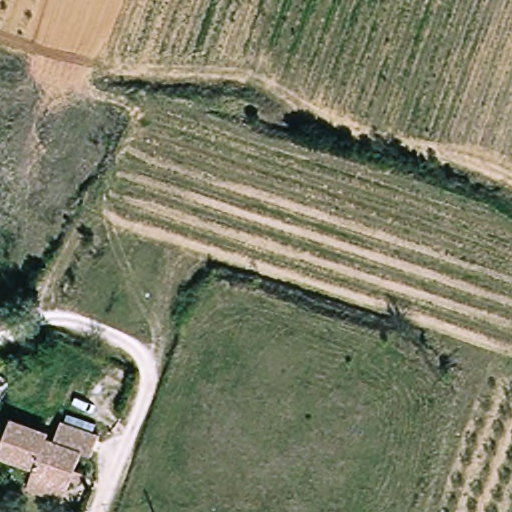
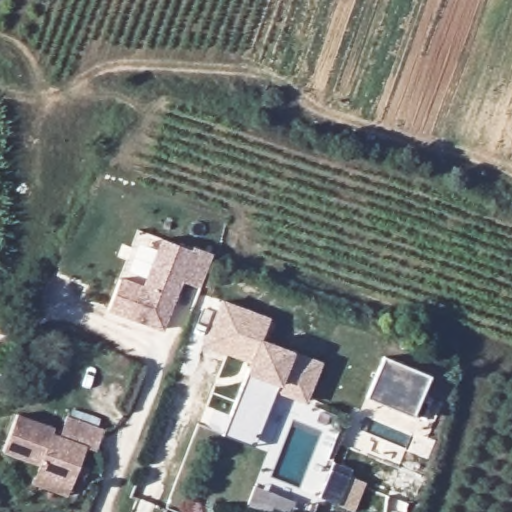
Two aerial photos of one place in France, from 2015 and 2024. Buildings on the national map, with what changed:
new [(200,287),(182,282),(163,331),(107,311),(120,277),(142,286),(161,239),(192,249),(193,246),(212,253),(200,287)]
new [(307,404),(273,391),(253,445),(224,433),(246,372),(250,361),(203,345),(220,298),(269,316),(261,338),(293,351),(321,362),(307,404)]
new [(431,375),(414,417),(366,398),(384,357),(431,375)]
unchanged [(40,466),(3,451),(16,416),(54,430),(53,433),(57,436),(65,416),(93,427),(102,431),(94,452),(87,448),(74,485),(38,471),(40,466)]
new [(335,465),(354,472),(340,507),(321,500),(335,465)]
unchanged [(72,484),(74,485),(69,499),(67,498),(33,485),(38,471),(72,484)]

